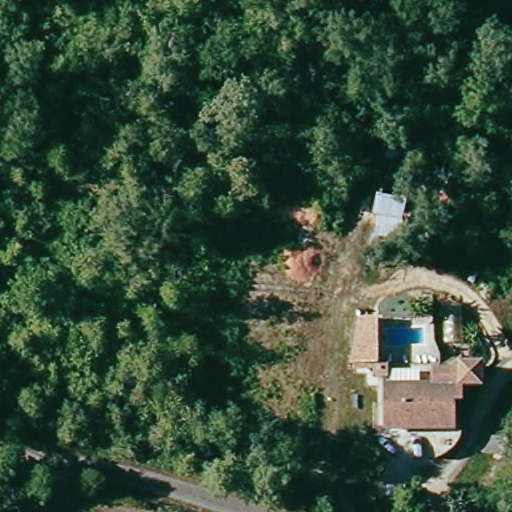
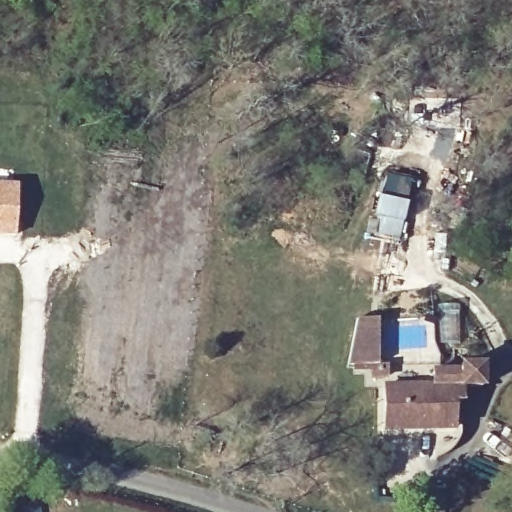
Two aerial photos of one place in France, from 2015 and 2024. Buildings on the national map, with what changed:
new [(0,235),(0,184),(17,184),(15,235),(0,235)]
unchanged [(378,319),(379,367),(349,369),(358,319),(378,319)]
unchanged [(431,366),(482,363),(482,388),(458,386),(432,387),(431,366)]
unchanged [(388,432),(388,388),(456,387),(464,387),(463,432),(456,432),(435,432),(410,432),(388,432)]

